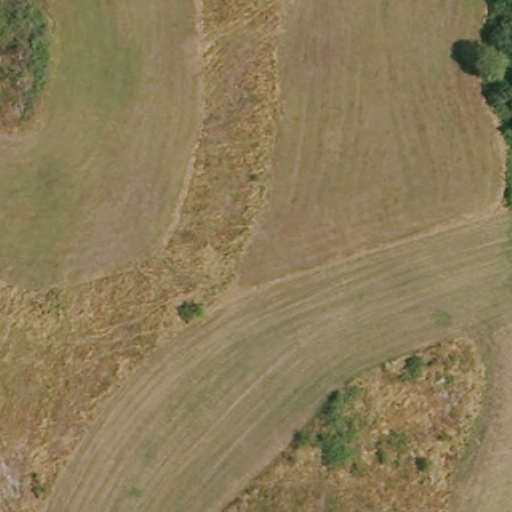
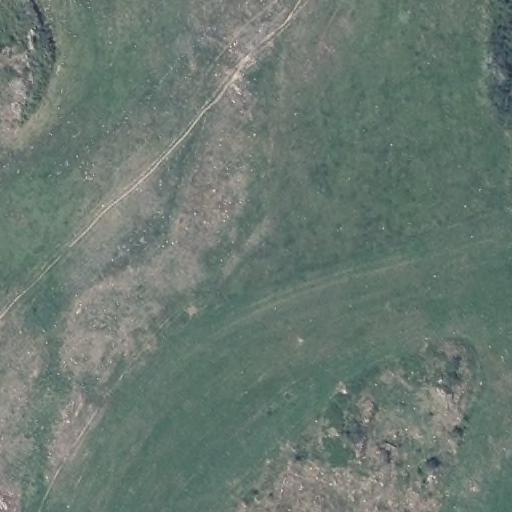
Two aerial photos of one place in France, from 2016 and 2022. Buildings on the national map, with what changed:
[]

